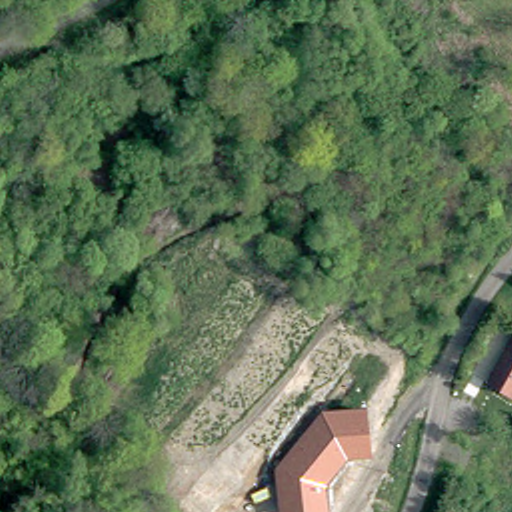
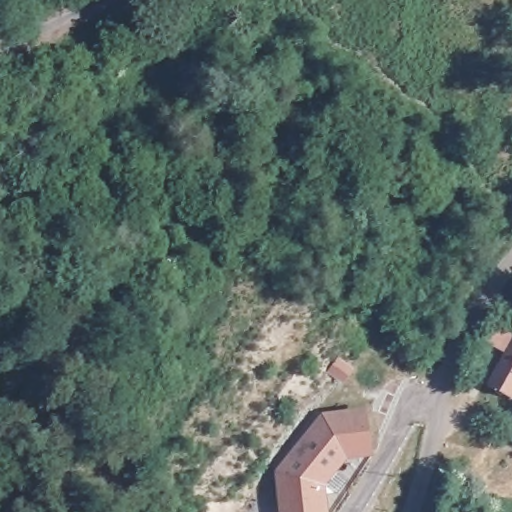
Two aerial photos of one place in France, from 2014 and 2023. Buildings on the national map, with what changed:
unchanged [(508,397),(484,383),(512,338),(512,391),(508,397)]
unchanged [(371,456),(349,459),(329,485),(331,512),(282,512),(276,464),(322,412),(365,407),(371,456)]

